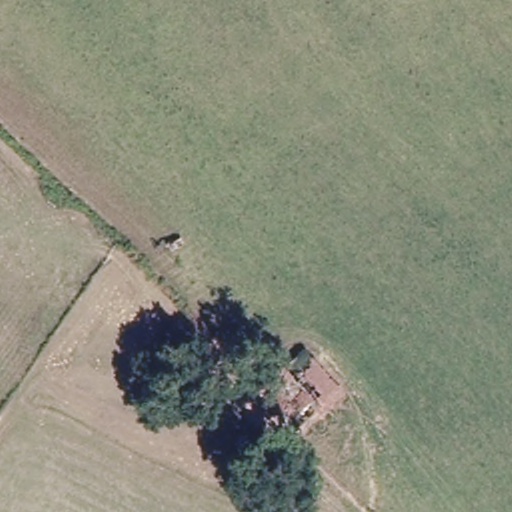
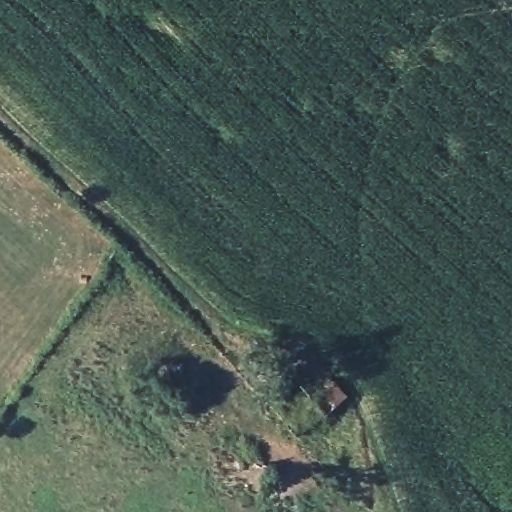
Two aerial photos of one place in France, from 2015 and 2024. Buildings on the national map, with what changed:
unchanged [(309,353),(346,393),(302,435),(263,395),(309,353)]

